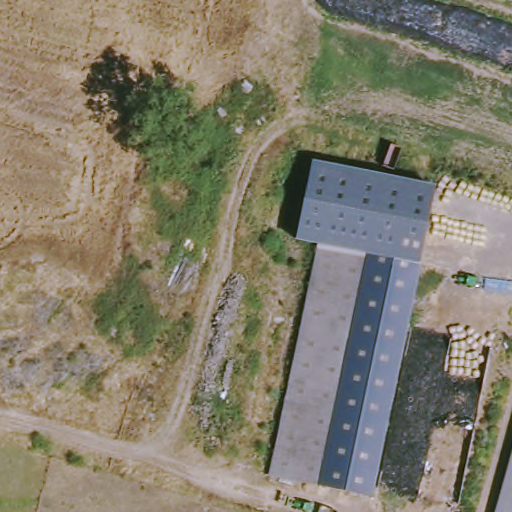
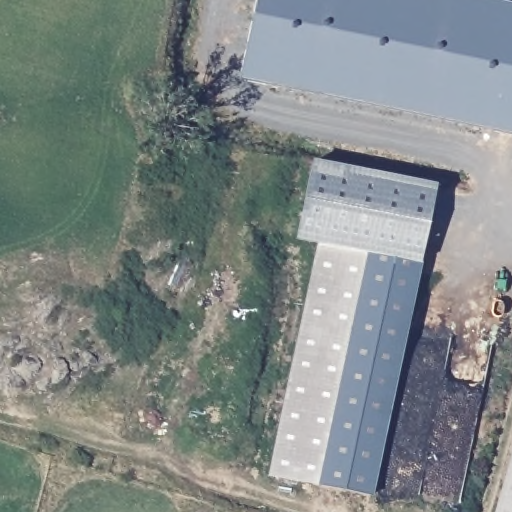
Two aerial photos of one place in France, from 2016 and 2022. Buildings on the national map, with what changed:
new [(512,134),(240,78),(257,0),(495,0),(512,4),(512,134)]
unchanged [(418,263),(371,496),(267,474),(315,242),(295,238),(310,160),(435,186),(418,263)]
unchanged [(512,512),(501,512),(512,471),(512,512)]

